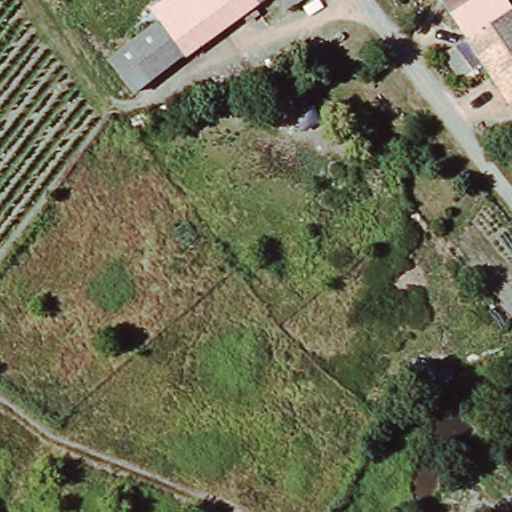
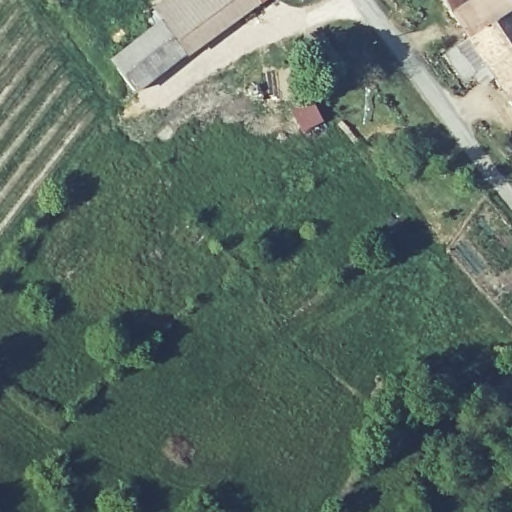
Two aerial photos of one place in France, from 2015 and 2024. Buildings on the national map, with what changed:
unchanged [(154,10),(168,0),(267,0),(186,57),(164,25),(154,10)]
unchanged [(501,0),(512,16),(512,107),(438,0),(501,0)]
unchanged [(138,91),(116,60),(164,25),(186,57),(138,91)]
unchanged [(437,365),(431,387),(407,381),(413,360),(437,365)]

